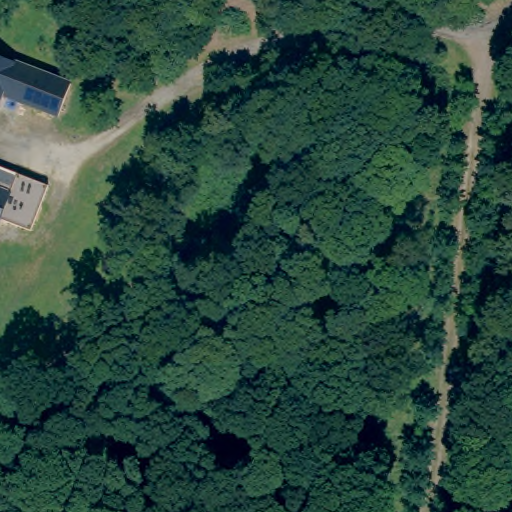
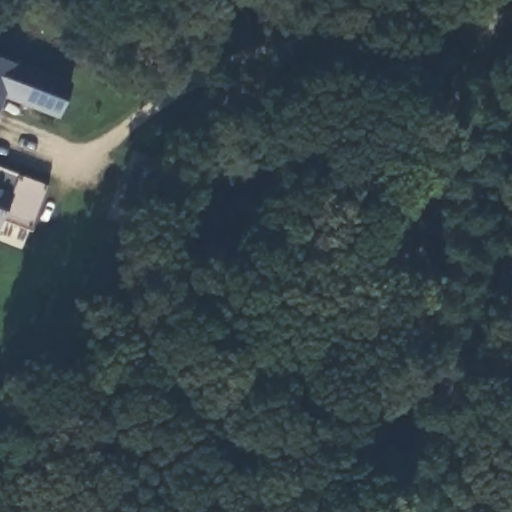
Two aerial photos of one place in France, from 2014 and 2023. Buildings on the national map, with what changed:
unchanged [(18,61),(73,81),(59,116),(4,96),(0,106),(0,56),(18,61)]
unchanged [(32,230),(1,219),(0,221),(0,167),(19,174),(49,185),(32,230)]

